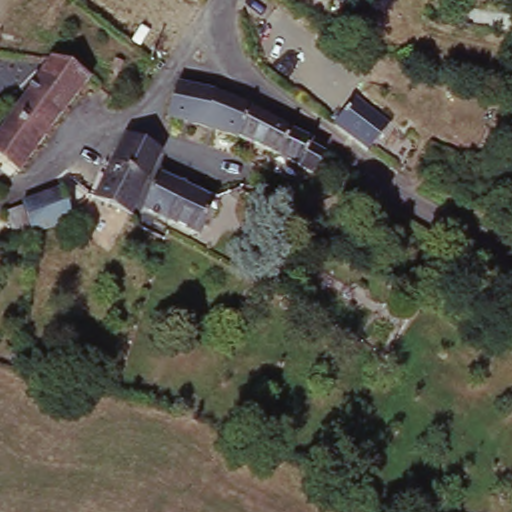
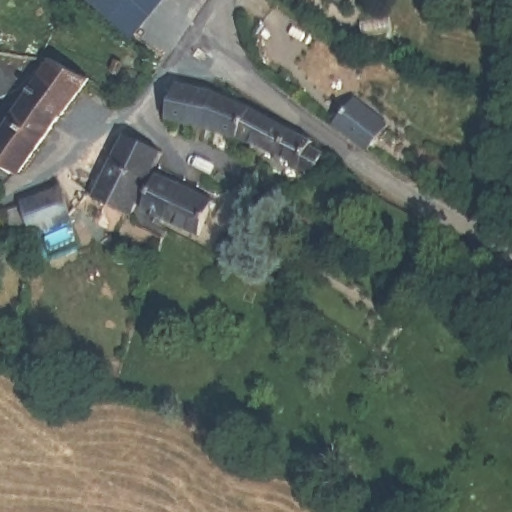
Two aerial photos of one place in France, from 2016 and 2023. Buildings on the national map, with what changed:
new [(83,0),(164,0),(131,39),(83,0)]
unchanged [(340,10),(325,0),(349,0),(340,10)]
unchanged [(490,0),(512,0),(512,9),(512,12),(489,9),(490,0)]
unchanged [(0,121),(44,58),(84,80),(14,174),(0,164),(0,121)]
unchanged [(164,127),(176,94),(210,105),(213,101),(239,114),(250,120),(238,149),(164,127)]
unchanged [(349,110),(382,135),(366,159),(331,135),(349,110)]
unchanged [(309,159),(323,164),(312,182),(238,149),(250,120),(308,148),(313,151),(309,159)]
unchanged [(124,145),(160,162),(155,174),(148,188),(111,171),(124,145)]
unchanged [(94,207),(111,171),(148,188),(132,224),(94,207)]
unchanged [(139,218),(157,183),(181,195),(166,230),(139,218)]
unchanged [(35,227),(20,234),(13,211),(28,207),(25,203),(33,200),(65,189),(74,219),(55,226),(36,234),(35,227)]
unchanged [(213,210),(198,244),(166,230),(181,195),(213,210)]

